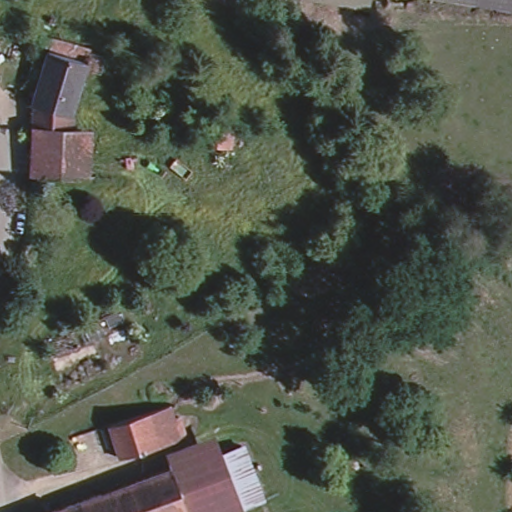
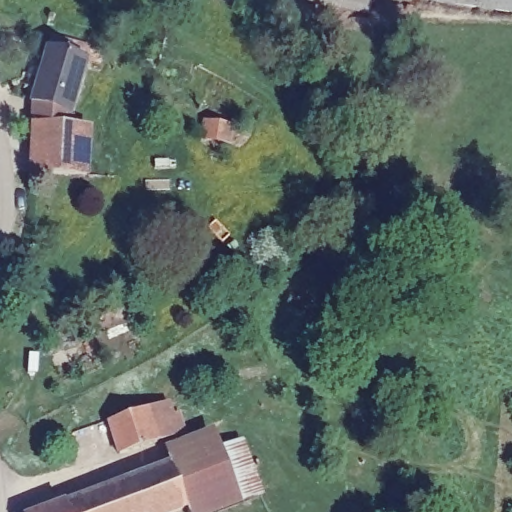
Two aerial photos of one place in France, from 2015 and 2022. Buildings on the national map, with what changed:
unchanged [(370,7),(329,0),(371,0),(370,7)]
unchanged [(477,0),(512,0),(512,5),(477,0)]
unchanged [(81,175),(26,173),(28,125),(29,104),(26,103),(43,49),(81,60),(65,115),(65,127),(77,127),(81,175)]
unchanged [(167,402),(178,435),(120,454),(109,421),(167,402)]
unchanged [(218,512),(188,512),(186,507),(171,467),(240,441),(254,477),(260,495),(218,512)]
unchanged [(171,467),(186,507),(174,512),(68,512),(65,502),(170,463),(171,467)]
unchanged [(68,512),(39,512),(65,502),(68,512)]

